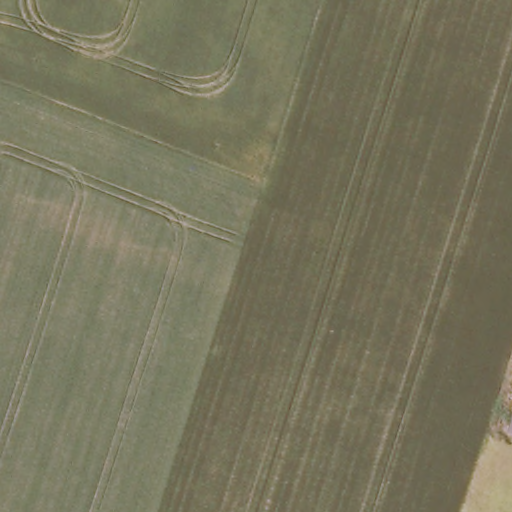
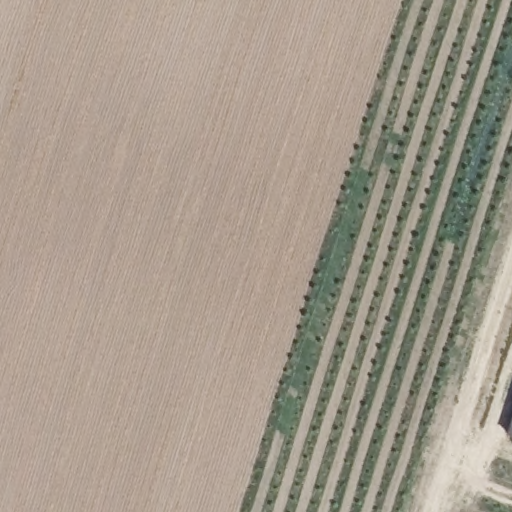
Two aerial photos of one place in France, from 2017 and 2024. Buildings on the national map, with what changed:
unchanged [(512,422),(512,436),(508,434),(512,422)]

